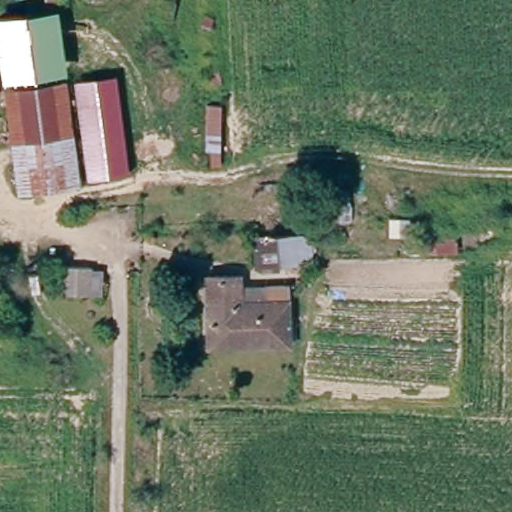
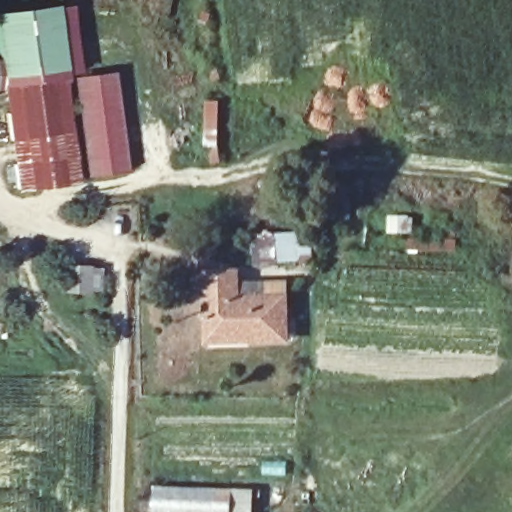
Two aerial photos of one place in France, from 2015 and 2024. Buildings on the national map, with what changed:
demolished [(108,0),(110,0),(109,1),(108,0)]
unchanged [(0,10),(56,2),(65,69),(0,78),(0,10)]
unchanged [(86,176),(72,75),(115,69),(129,171),(86,176)]
unchanged [(20,189),(9,86),(69,85),(79,185),(20,189)]
unchanged [(298,234),(300,243),(310,243),(310,262),(265,266),(265,264),(256,264),(254,235),(298,234)]
unchanged [(60,293),(61,263),(92,263),(93,268),(104,268),(102,294),(60,293)]
unchanged [(241,301),(286,301),(286,343),(250,344),(249,336),(210,337),(210,280),(241,280),(241,301)]
new [(159,486),(234,489),(232,512),(157,512),(159,486)]

